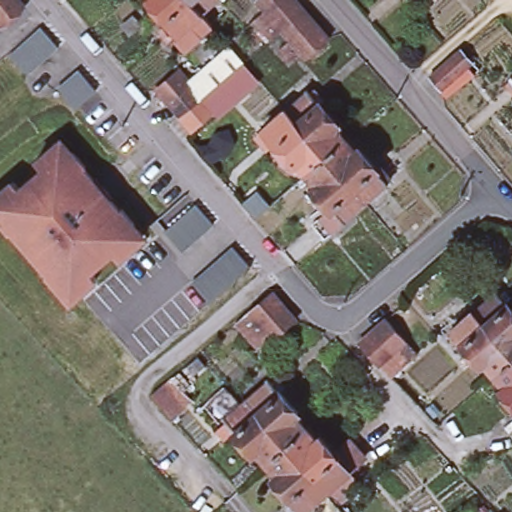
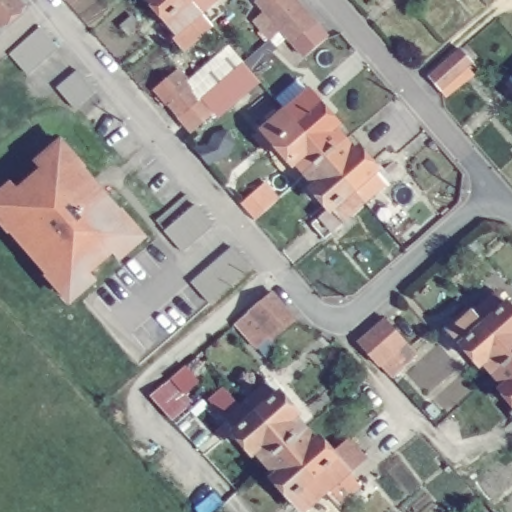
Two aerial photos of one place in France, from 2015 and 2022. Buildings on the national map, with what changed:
unchanged [(6,0),(16,0),(23,9),(2,27),(0,29),(0,0),(6,0)]
unchanged [(184,49),(173,36),(161,22),(166,18),(150,0),(189,0),(217,0),(200,14),(211,25),(184,49)]
unchanged [(292,42),(281,29),(270,16),(258,2),(261,0),(288,0),(295,0),(303,10),(315,23),(327,37),(305,56),(292,42)]
unchanged [(29,33),(38,25),(57,45),(47,54),(37,62),(27,71),(8,51),(18,42),(29,33)]
unchanged [(472,64),(442,90),(430,76),(460,50),(472,64)]
unchanged [(191,125),(179,111),(167,97),(165,97),(155,85),(177,64),(189,78),(190,80),(207,66),(217,79),(225,72),(240,91),(222,106),(217,99),(210,104),(213,106),(191,125)]
unchanged [(512,70),(512,74),(510,71),(512,70)]
unchanged [(82,74),(100,94),(90,102),(80,111),(62,91),(73,82),(82,74)]
unchanged [(303,83),(332,117),(328,121),(338,134),(319,151),(279,105),(303,83)]
unchanged [(279,105),(319,151),(300,167),(290,154),(285,157),(257,124),(279,105)]
unchanged [(338,134),(350,146),(353,143),(383,177),(359,198),(319,151),(338,134)]
unchanged [(16,186),(22,194),(45,174),(40,166),(58,150),(68,162),(76,156),(90,172),(88,174),(105,193),(36,254),(20,235),(17,236),(3,220),(10,214),(0,202),(0,201),(16,186)]
unchanged [(307,218),(325,202),(307,182),(311,180),(300,167),(319,151),(359,198),(337,217),(319,232),(307,218)]
unchanged [(107,191),(117,202),(115,204),(125,215),(126,214),(140,230),(132,236),(143,249),(127,263),(120,255),(97,275),(104,282),(86,298),(76,286),(67,294),(54,278),(56,276),(36,254),(105,193),(107,191)]
unchanged [(165,230),(174,221),(185,213),(195,204),(212,224),(202,232),(192,241),(182,250),(165,230)]
unchanged [(227,260),(237,251),(253,271),(244,279),(233,288),(224,296),(213,305),(197,286),(207,277),(217,269),(227,260)]
unchanged [(494,290),(512,310),(512,357),(472,310),(492,293),(494,290)]
unchanged [(272,296),(285,310),(297,323),(273,343),(270,339),(255,351),(235,328),(249,315),(272,296)]
unchanged [(482,361),(479,364),(448,329),(452,327),(472,310),(512,357),(493,373),(482,361)]
unchanged [(388,380),(378,370),(357,347),(371,336),(385,323),(405,346),(414,356),(388,380)]
unchanged [(505,386),(493,373),(512,357),(512,401),(502,390),(505,386)]
unchanged [(267,380),(297,413),(293,416),(305,428),(285,444),(245,398),(267,380)]
unchanged [(163,382),(185,407),(172,418),(149,395),(163,382)]
unchanged [(256,449),(252,452),(222,419),(245,398),(285,444),(267,461),(256,449)]
unchanged [(512,406),(512,414),(508,410),(512,406)]
unchanged [(336,502),(344,512),(305,512),(303,510),(273,476),(277,472),(267,461),(285,444),(305,428),(315,440),(318,437),(332,453),(345,441),(360,458),(347,470),(358,482),(336,502)]

